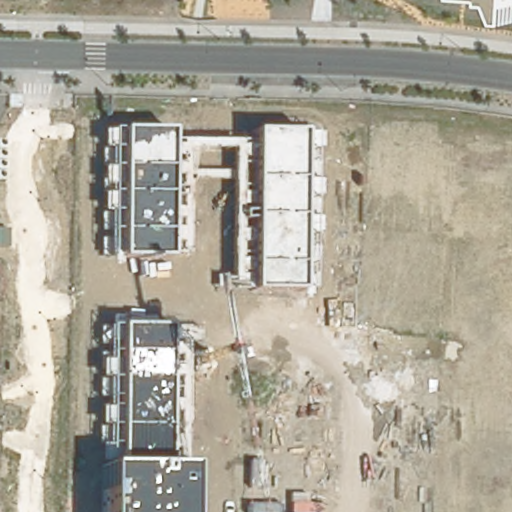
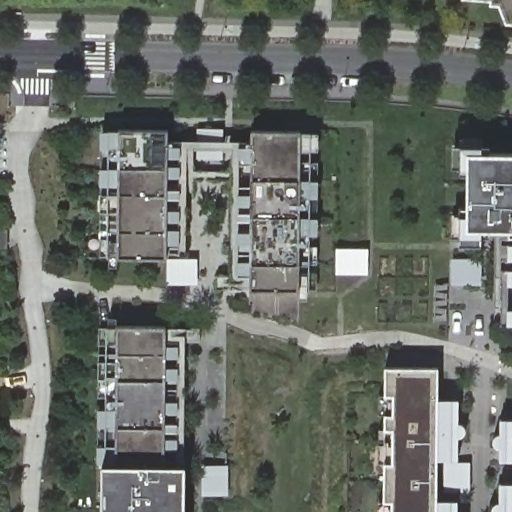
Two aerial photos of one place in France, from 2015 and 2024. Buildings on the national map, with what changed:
unchanged [(496,6),(488,5),(488,0),(512,0),(512,24),(504,24),(496,6)]
unchanged [(184,257),(100,258),(103,130),(169,131),(170,140),(183,140),(184,257)]
new [(199,130),(222,131),(221,158),(199,158),(199,130)]
unchanged [(310,292),(228,291),(228,140),(251,140),(251,130),(313,130),(310,292)]
new [(512,230),(465,230),(466,152),(512,153),(512,230)]
new [(455,256),(483,256),(483,285),(455,285),(455,256)]
unchanged [(103,326),(184,328),(185,465),(103,465),(103,326)]
new [(437,366),(437,399),(436,460),(436,500),(456,500),(456,512),(383,512),(383,366),(437,366)]
new [(437,399),(457,399),(457,460),(436,460),(437,399)]
new [(499,418),(512,418),(512,460),(499,460),(499,418)]
unchanged [(185,465),(185,512),(104,512),(103,465),(185,465)]
new [(446,465),(469,465),(469,489),(446,489),(446,465)]
new [(512,483),(512,512),(498,512),(498,483),(512,483)]

